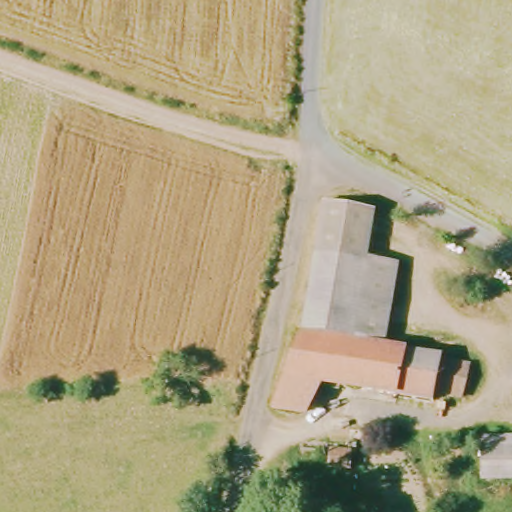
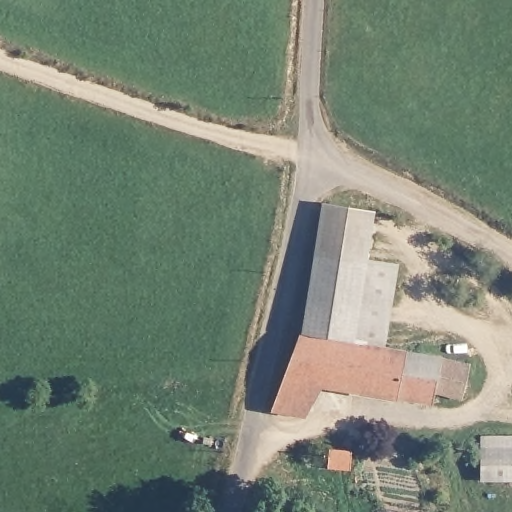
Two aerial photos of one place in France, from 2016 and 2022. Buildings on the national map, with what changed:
unchanged [(321,278),(323,272),(330,215),(331,206),(346,208),(377,211),(372,259),(403,263),(389,351),(313,342),(314,336),(321,278)]
unchanged [(389,351),(449,359),(442,394),(440,406),(379,396),(333,389),(291,383),(308,342),(313,342),(389,351)]
unchanged [(480,363),(474,398),(442,394),(449,359),(480,363)]
unchanged [(333,389),(318,422),(283,414),(291,383),(333,389)]
unchanged [(369,440),(369,458),(347,459),(347,441),(369,440)]
unchanged [(489,440),(512,440),(512,482),(488,483),(489,440)]

